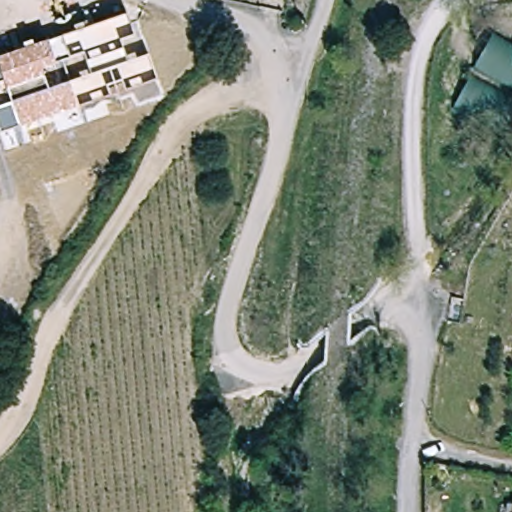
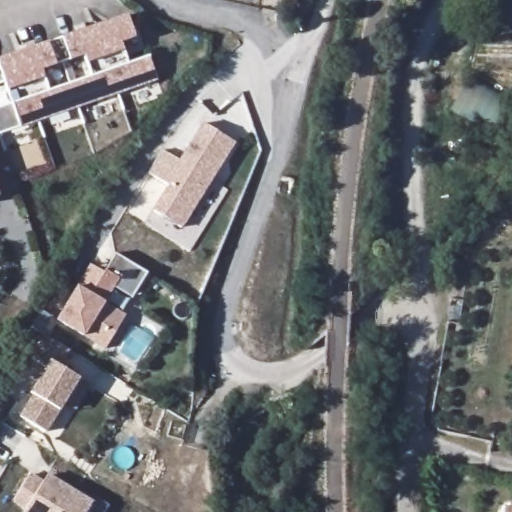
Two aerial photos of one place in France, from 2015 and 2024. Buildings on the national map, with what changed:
unchanged [(0,132),(0,107),(12,103),(4,80),(0,81),(0,58),(48,42),(128,15),(135,39),(121,42),(127,65),(151,57),(158,83),(19,127),(0,132)]
unchanged [(512,38),(512,116),(503,132),(450,107),(496,28),(512,38)]
new [(182,229),(153,210),(169,184),(150,172),(164,150),(179,159),(202,122),(236,142),(182,229)]
new [(105,350),(85,336),(57,320),(77,286),(91,265),(104,272),(115,253),(148,272),(133,297),(115,287),(106,301),(126,315),(105,350)]
new [(29,393),(26,391),(42,365),(25,355),(39,332),(65,347),(55,363),(75,375),(59,401),(42,430),(16,414),(29,393)]
new [(23,512),(25,510),(12,502),(30,472),(43,481),(47,473),(93,501),(87,512),(23,512)]

